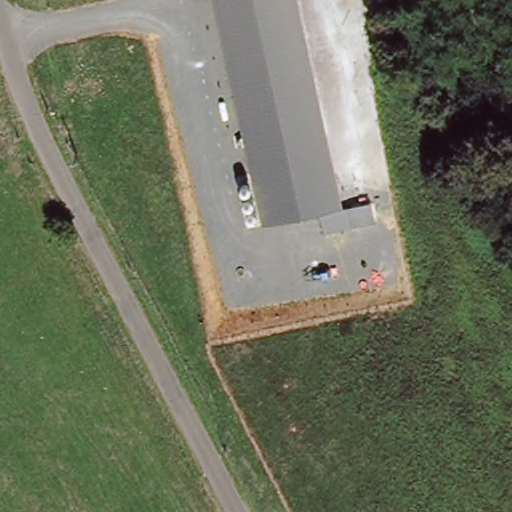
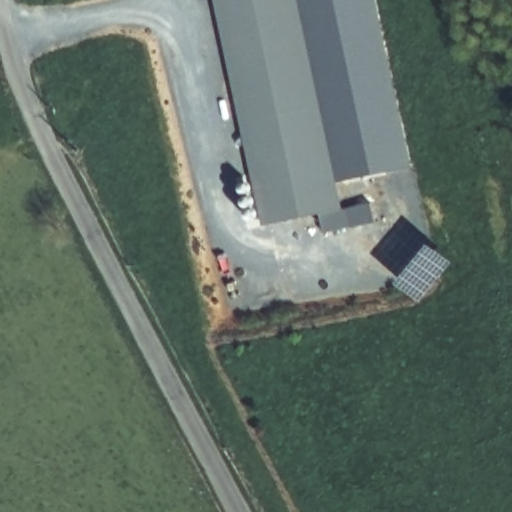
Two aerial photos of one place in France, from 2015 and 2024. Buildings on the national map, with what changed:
unchanged [(302,13),(337,184),(343,209),(372,202),(378,223),(326,235),(322,215),(263,226),(215,0),(299,0),(302,13)]
new [(302,13),(299,0),(376,0),(411,167),(337,184),(302,13)]

